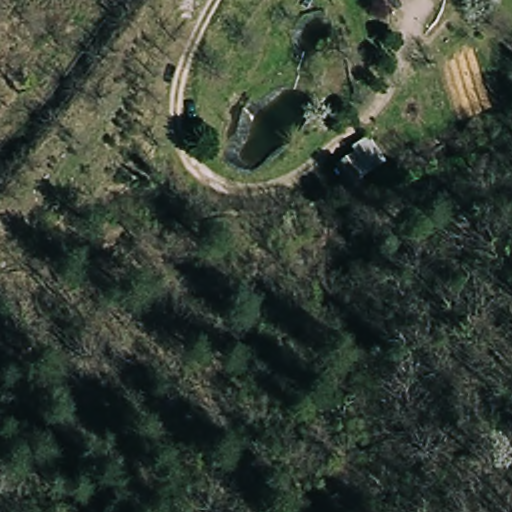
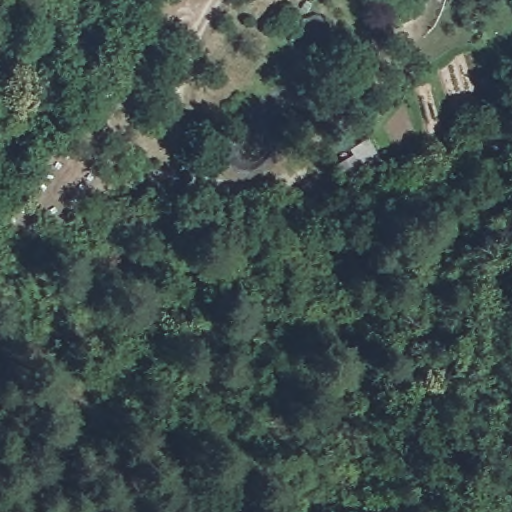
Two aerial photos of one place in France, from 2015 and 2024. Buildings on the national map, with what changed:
unchanged [(390,165),(370,176),(366,168),(347,180),(338,165),(357,154),(354,146),(376,138),(390,165)]

